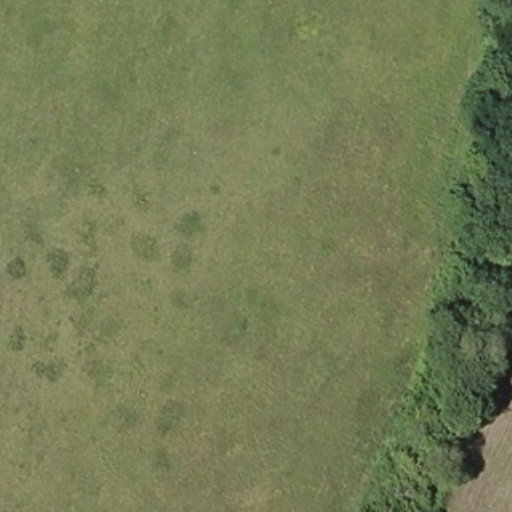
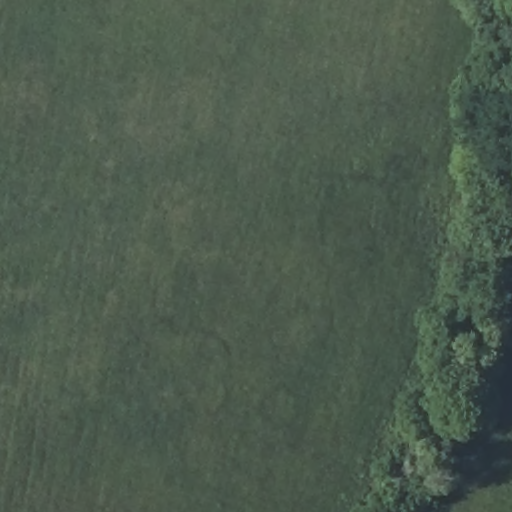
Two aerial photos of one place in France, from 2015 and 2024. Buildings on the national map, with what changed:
[]

